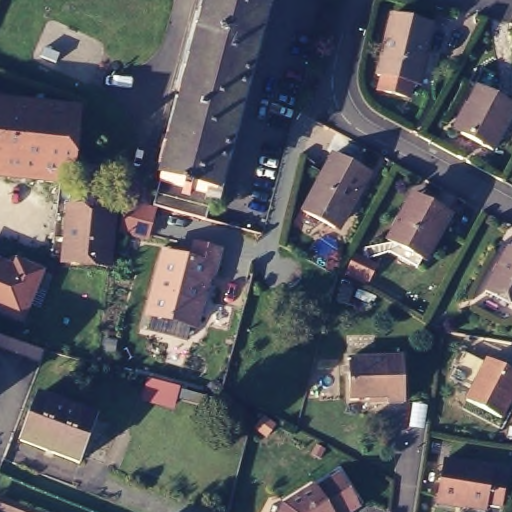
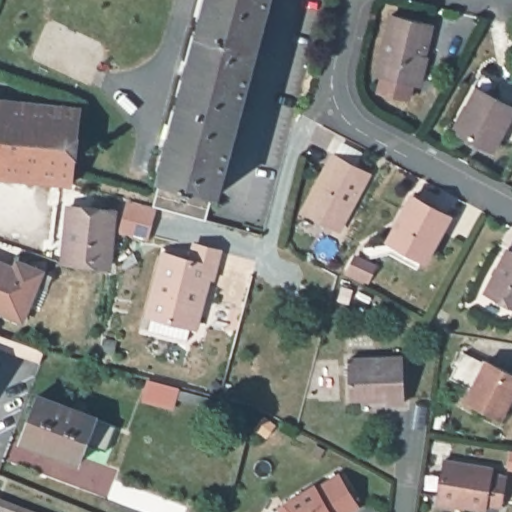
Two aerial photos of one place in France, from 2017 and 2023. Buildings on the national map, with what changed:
unchanged [(268,0),(216,198),(211,197),(206,219),(206,220),(153,205),(207,0),(268,0)]
unchanged [(411,79),(408,92),(378,84),(381,71),(378,70),(392,10),(430,20),(416,80),(411,79)]
unchanged [(455,131),(477,89),(512,107),(512,112),(492,150),(455,131)]
unchanged [(70,183),(60,182),(29,179),(0,176),(0,101),(78,109),(70,183)]
unchanged [(334,154),(368,172),(346,213),(343,212),(334,227),(303,210),(334,154)]
unchanged [(424,262),(387,241),(408,202),(412,195),(431,207),(449,216),(424,262)]
unchanged [(148,239),(121,232),(128,203),(155,209),(148,239)]
unchanged [(68,209),(114,214),(108,269),(63,264),(68,209)]
unchanged [(146,324),(150,309),(146,309),(163,249),(188,255),(193,239),(219,247),(212,273),(207,272),(193,322),(189,320),(185,334),(146,324)]
unchanged [(484,287),(507,244),(512,247),(512,302),(484,287)]
unchanged [(374,266),(364,283),(346,274),(354,257),(374,266)]
unchanged [(17,264),(46,276),(34,307),(23,303),(15,320),(0,314),(0,266),(13,271),(17,264)]
unchanged [(354,289),(349,304),(339,300),(343,287),(354,289)]
unchanged [(398,362),(399,408),(383,409),(383,404),(346,405),(344,364),(398,362)]
unchanged [(487,362),(512,376),(512,394),(499,417),(466,399),(487,362)]
unchanged [(173,397),(169,406),(141,398),(146,381),(175,388),(211,398),(208,406),(173,397)]
unchanged [(108,459),(84,451),(83,457),(23,435),(40,391),(122,421),(108,459)]
unchanged [(487,509),(487,512),(466,512),(438,507),(444,465),(494,474),(493,479),(507,482),(502,512),(487,509)]
unchanged [(334,475),(354,507),(345,512),(277,512),(281,506),(311,487),(312,489),(334,475)]
unchanged [(0,502),(26,512),(0,512),(0,502)]

